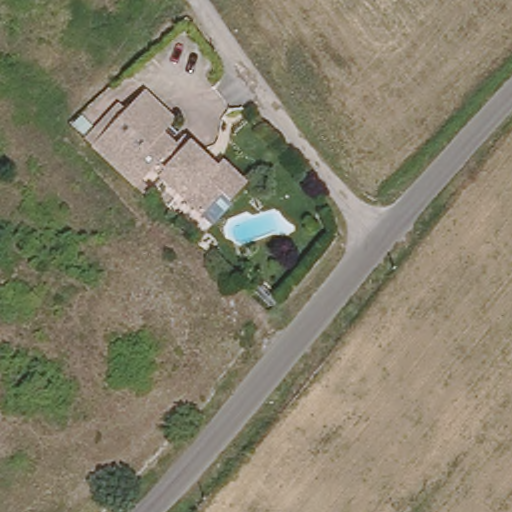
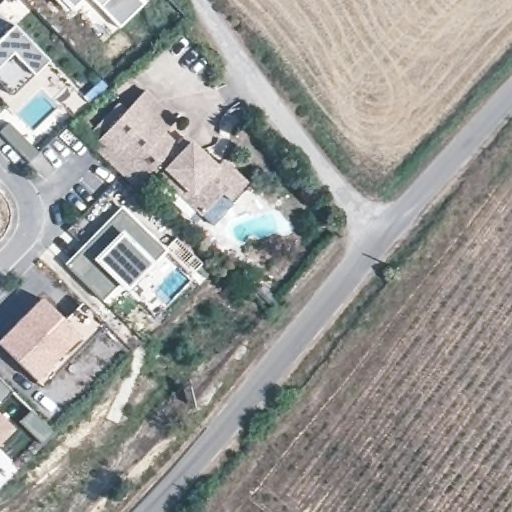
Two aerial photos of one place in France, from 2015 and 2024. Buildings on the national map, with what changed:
new [(69,9),(60,0),(79,0),(69,9)]
new [(143,4),(120,26),(95,0),(140,0),(143,4)]
new [(12,96),(0,84),(0,11),(49,61),(12,96)]
unchanged [(212,219),(210,220),(168,180),(173,175),(167,170),(152,185),(162,195),(156,201),(146,191),(145,192),(101,151),(94,144),(102,135),(99,132),(134,95),(136,97),(154,96),(185,125),(174,136),(187,148),(194,140),(226,171),(232,165),(256,188),(239,206),(238,205),(219,225),(212,219)]
new [(121,282),(103,300),(67,265),(122,209),(165,250),(147,269),(128,288),(121,282)]
new [(65,320),(83,337),(37,380),(0,343),(0,340),(42,297),(65,320)]
new [(83,337),(65,320),(83,301),(108,325),(43,385),(37,380),(83,337)]
new [(0,405),(0,378),(14,391),(0,405)]
new [(0,443),(0,414),(14,429),(0,443)]

